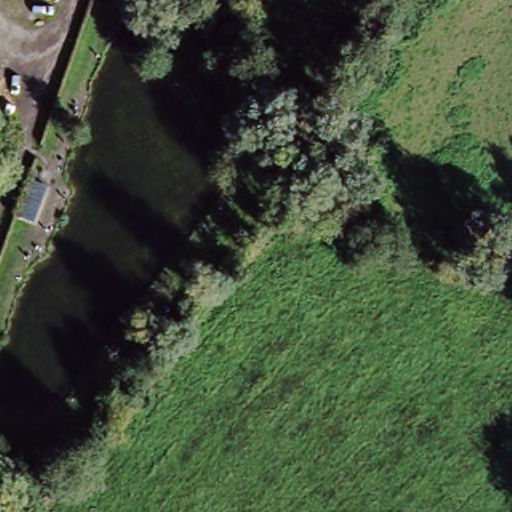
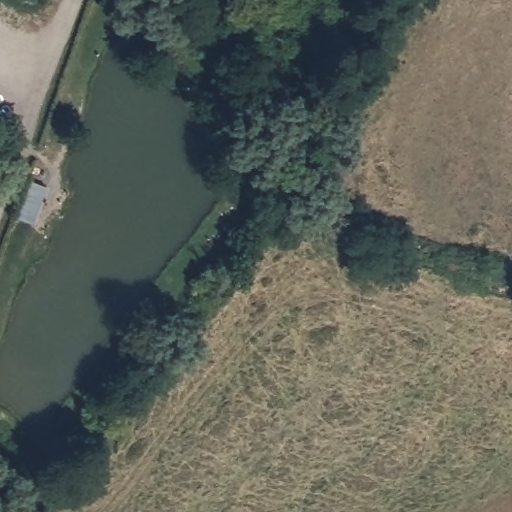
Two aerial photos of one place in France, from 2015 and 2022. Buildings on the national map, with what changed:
unchanged [(247,93),(267,76),(291,104),(271,121),(247,93)]
unchanged [(34,226),(21,222),(33,185),(46,189),(34,226)]

